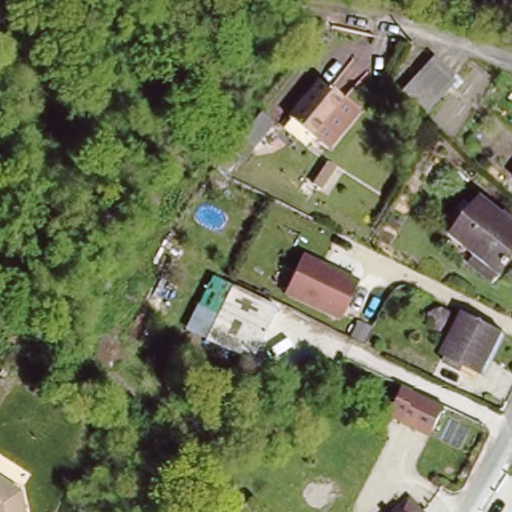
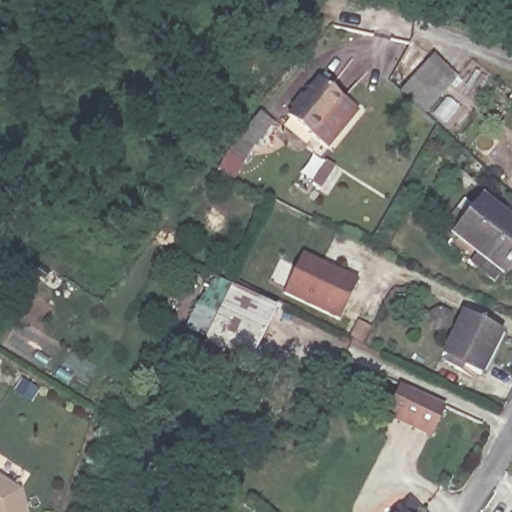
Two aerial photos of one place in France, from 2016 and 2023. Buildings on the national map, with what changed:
unchanged [(401,94),(432,59),(455,78),(423,114),(401,94)]
unchanged [(295,121),(323,84),(345,101),(317,138),(295,121)]
unchanged [(264,113),(276,122),(258,147),(245,138),(264,113)]
unchanged [(512,225),(512,258),(498,274),(450,235),(478,198),(512,225)]
unchanged [(359,278),(341,319),(281,293),(301,248),(359,278)]
unchanged [(198,358),(206,342),(235,287),(277,308),(247,364),(239,380),(198,358)]
unchanged [(500,331),(480,374),(442,358),(461,314),(500,331)]
unchanged [(441,411),(427,440),(384,419),(398,391),(441,411)]
unchanged [(26,512),(0,512),(0,476),(21,489),(26,512)]

